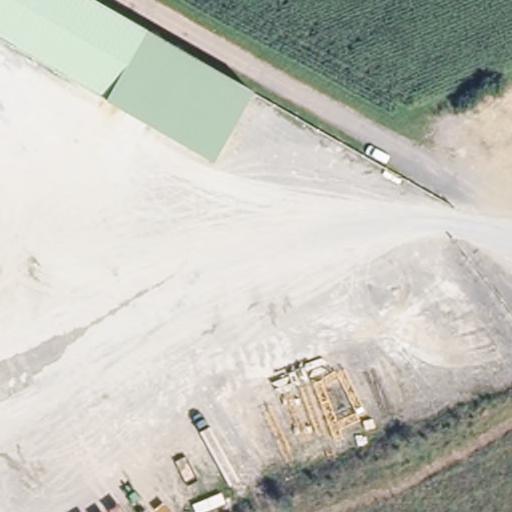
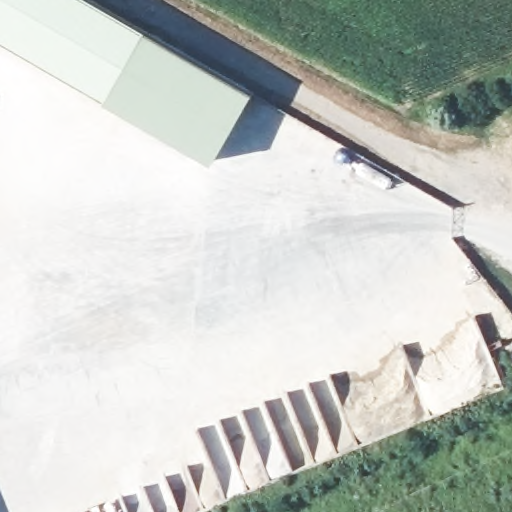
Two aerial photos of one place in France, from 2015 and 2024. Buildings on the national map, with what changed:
unchanged [(215,161),(0,38),(0,0),(95,0),(252,90),(215,161)]

